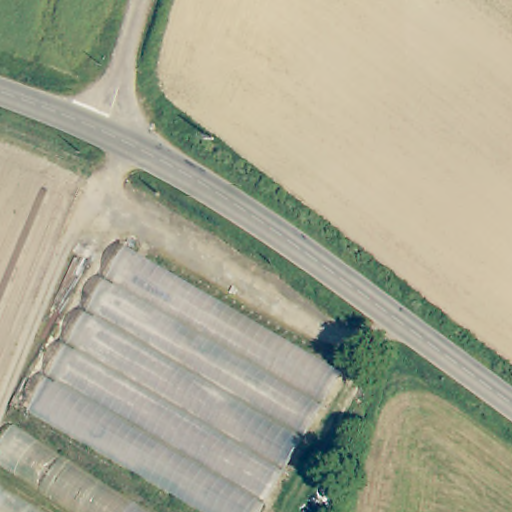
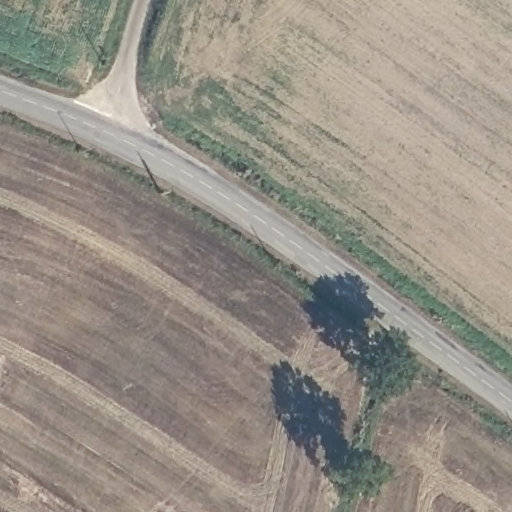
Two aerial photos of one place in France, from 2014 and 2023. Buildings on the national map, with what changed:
demolished [(0,512),(0,459),(20,426),(26,432),(35,418),(132,244),(347,372),(265,512),(0,512)]

